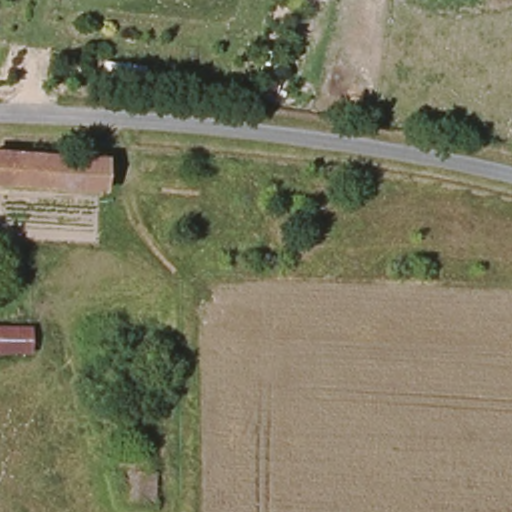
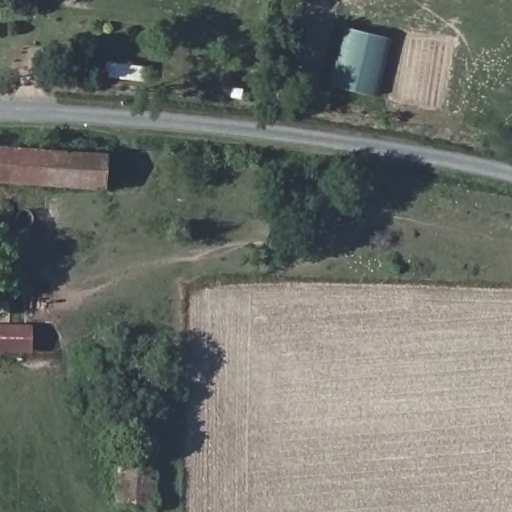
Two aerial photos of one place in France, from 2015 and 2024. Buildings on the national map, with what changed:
new [(343,26),(390,36),(375,95),(331,85),(343,26)]
unchanged [(98,161),(94,192),(25,183),(7,180),(10,149),(98,161)]
unchanged [(34,347),(0,348),(0,326),(34,326),(34,347)]
unchanged [(124,502),(126,449),(148,450),(148,473),(161,475),(160,502),(124,502)]

